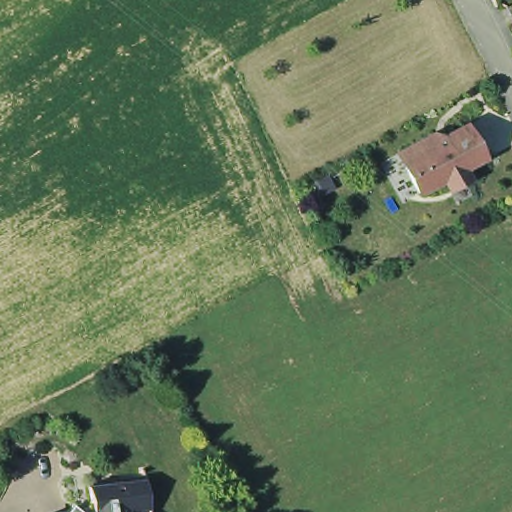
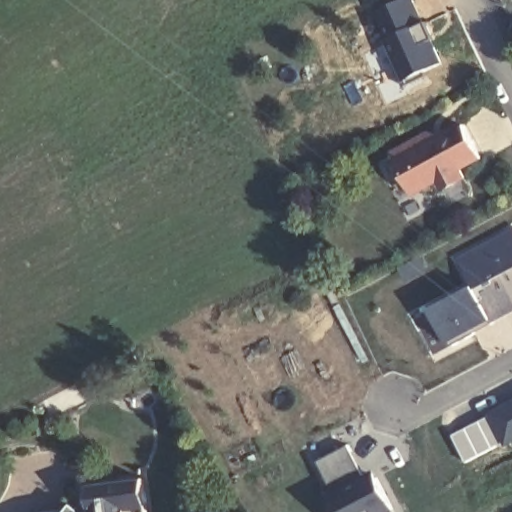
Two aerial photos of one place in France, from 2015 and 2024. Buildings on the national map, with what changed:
new [(408,0),(420,0),(453,63),(412,82),(380,12),(408,0)]
unchanged [(432,136),(441,139),(462,128),(480,161),(460,172),(465,180),(445,191),(440,182),(415,195),(405,176),(395,156),(400,153),(432,136)]
new [(512,311),(494,323),(471,283),(467,286),(450,257),(512,223),(512,311)]
new [(467,286),(471,283),(494,323),(451,348),(427,304),(467,286)]
new [(427,304),(451,348),(432,359),(407,313),(427,304)]
new [(512,443),(504,447),(487,414),(512,398),(512,443)]
new [(487,414),(504,447),(467,463),(452,435),(487,414)]
new [(336,492),(320,461),(350,445),(366,476),(377,471),(397,512),(338,512),(330,495),(336,492)]
unchanged [(149,486),(151,511),(139,512),(97,512),(92,491),(149,486)]

